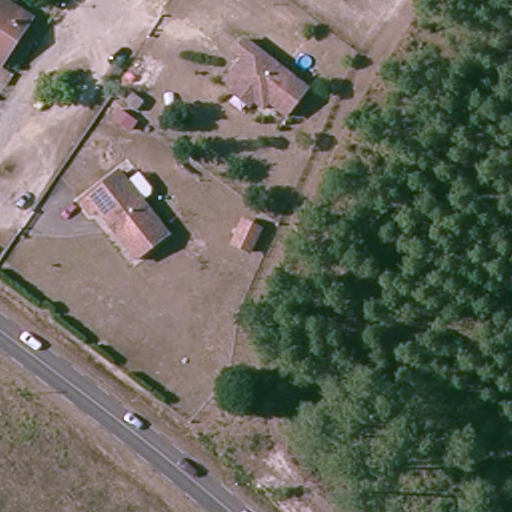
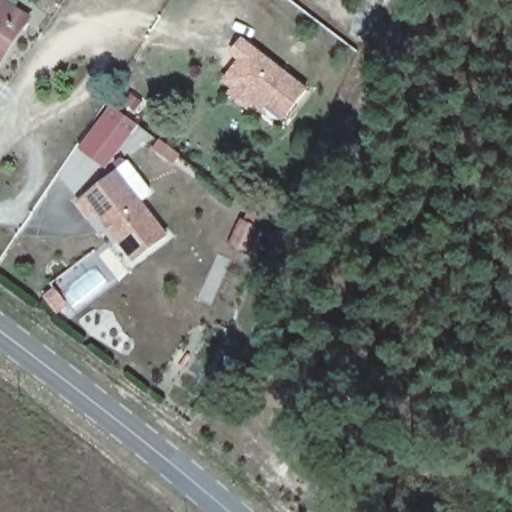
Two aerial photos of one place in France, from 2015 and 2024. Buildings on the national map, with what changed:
unchanged [(1,61),(0,61),(0,4),(3,0),(4,0),(31,19),(1,61)]
unchanged [(246,97),(249,91),(237,84),(245,71),(251,62),(241,56),(251,41),(320,84),(301,113),(282,102),(277,109),(266,102),(262,108),(246,97)]
new [(80,148),(112,104),(139,124),(107,169),(80,148)]
unchanged [(94,208),(85,196),(122,165),(182,238),(149,265),(99,204),(94,208)]
unchanged [(270,233),(255,253),(240,242),(255,222),(270,233)]

